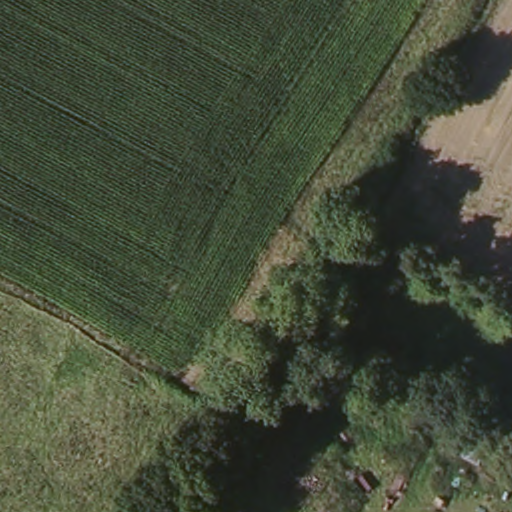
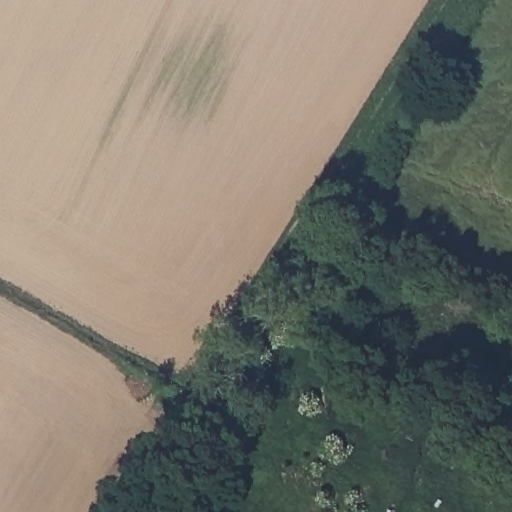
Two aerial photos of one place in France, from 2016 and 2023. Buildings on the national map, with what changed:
unchanged [(458,452),(472,422),(494,436),(478,462),(458,452)]

